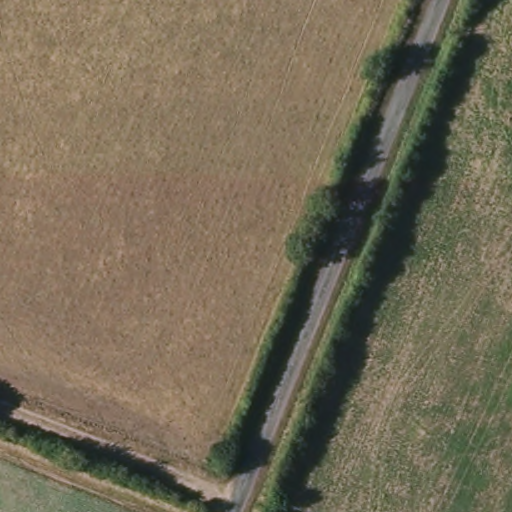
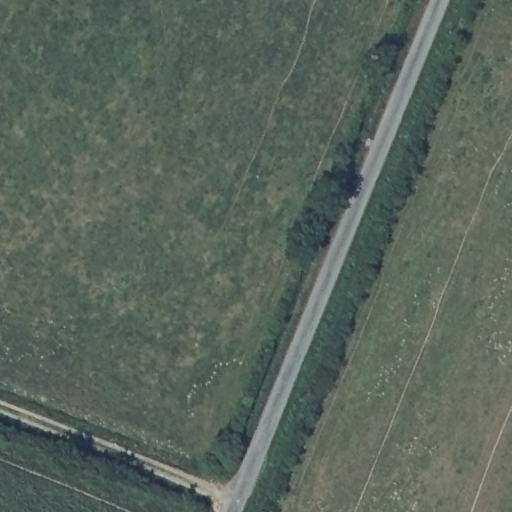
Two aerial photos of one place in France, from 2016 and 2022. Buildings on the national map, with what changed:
[]

